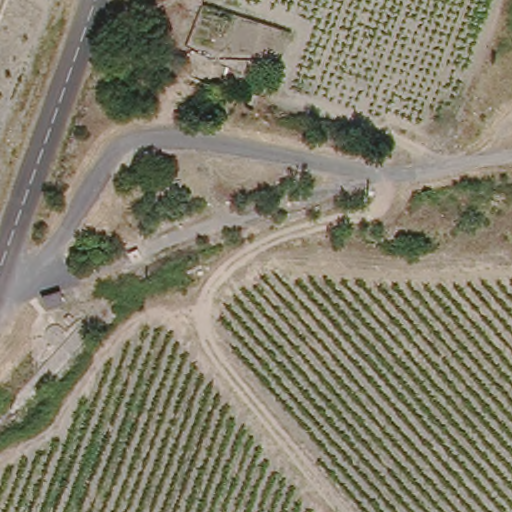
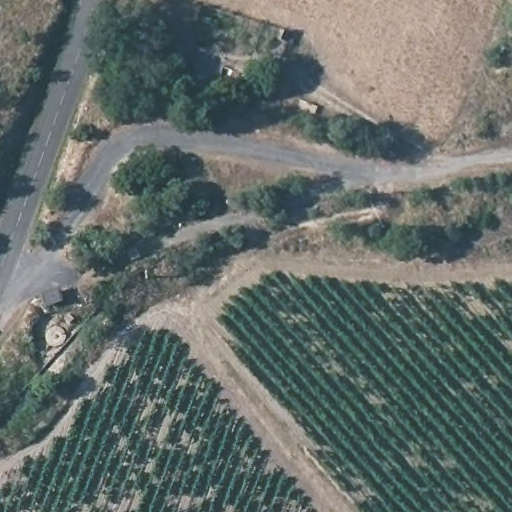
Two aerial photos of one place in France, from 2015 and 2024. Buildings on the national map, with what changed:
unchanged [(59,287),(65,302),(45,309),(41,292),(59,287)]

